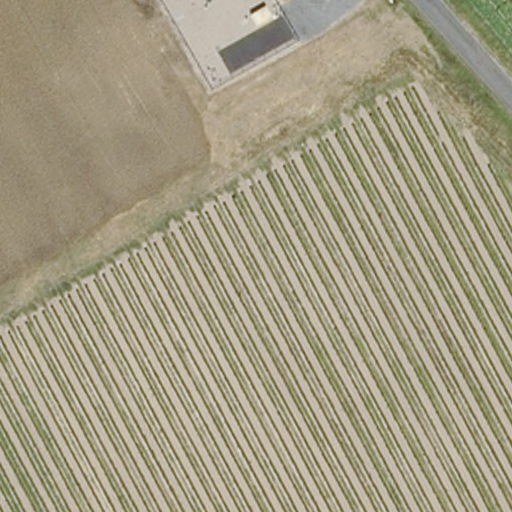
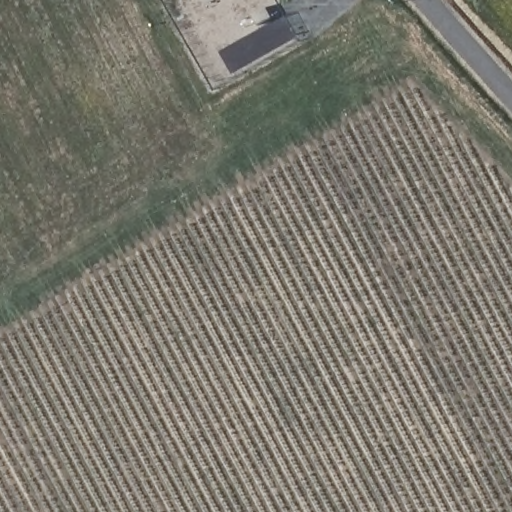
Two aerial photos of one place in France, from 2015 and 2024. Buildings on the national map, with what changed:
[]

